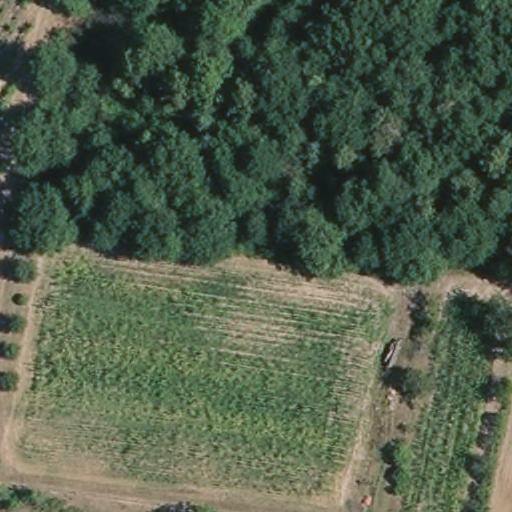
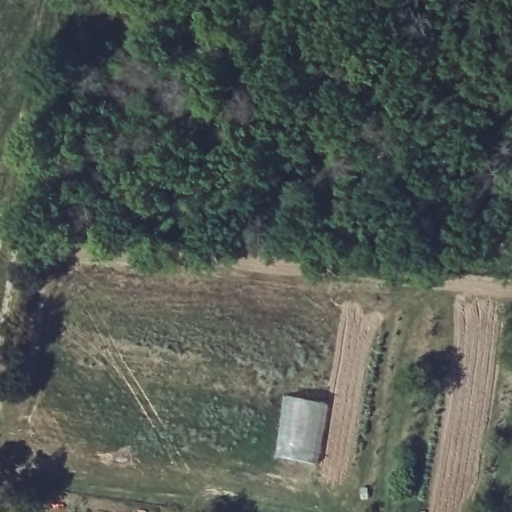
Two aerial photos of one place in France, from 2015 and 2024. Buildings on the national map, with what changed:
new [(283,395),(330,403),(318,466),(273,457),(283,395)]

